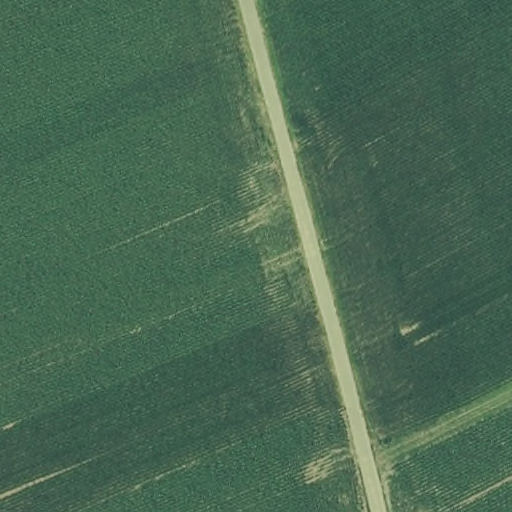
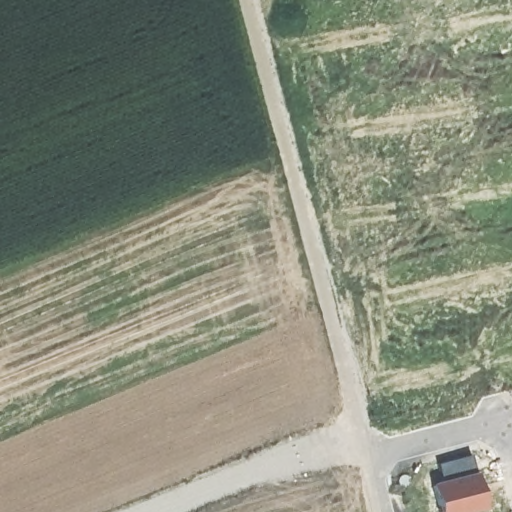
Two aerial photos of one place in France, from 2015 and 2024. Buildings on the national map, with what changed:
new [(477,473),(487,511),(484,512),(442,512),(435,483),(442,481),(438,464),(472,457),(477,473)]

